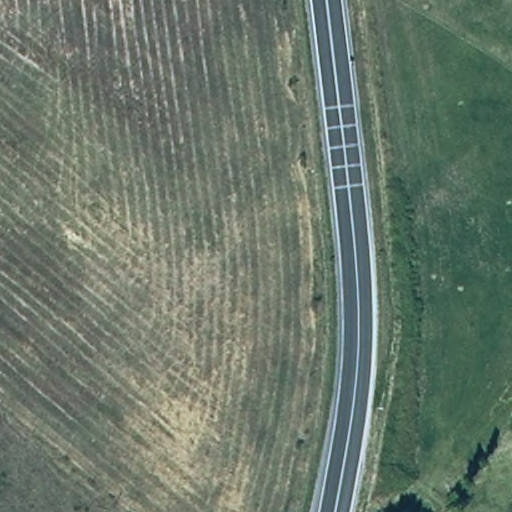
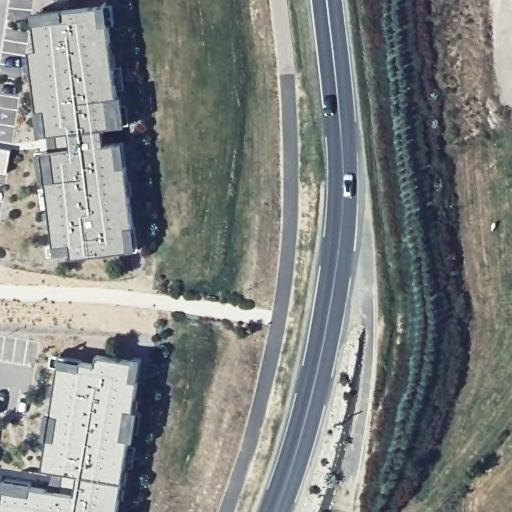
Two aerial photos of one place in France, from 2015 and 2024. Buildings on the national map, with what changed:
new [(136,251),(56,260),(28,51),(35,50),(30,13),(106,5),(136,251)]
new [(6,174),(0,173),(0,149),(10,151),(6,174)]
new [(4,478),(34,483),(32,490),(78,495),(80,475),(43,469),(48,440),(42,439),(46,413),(52,414),(62,358),(97,365),(99,355),(133,362),(134,357),(144,358),(135,411),(140,411),(135,442),(130,440),(119,512),(0,512),(0,482),(3,483),(4,478)]

